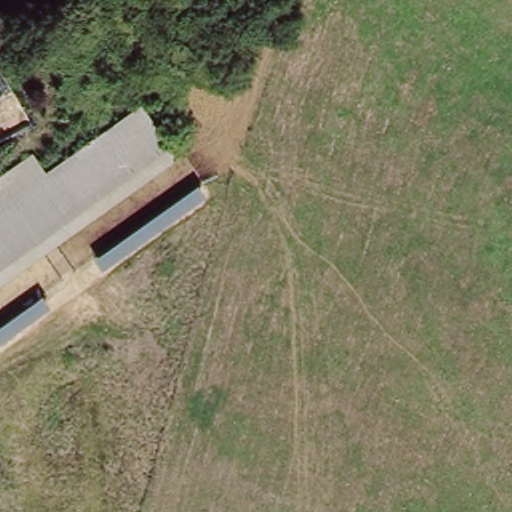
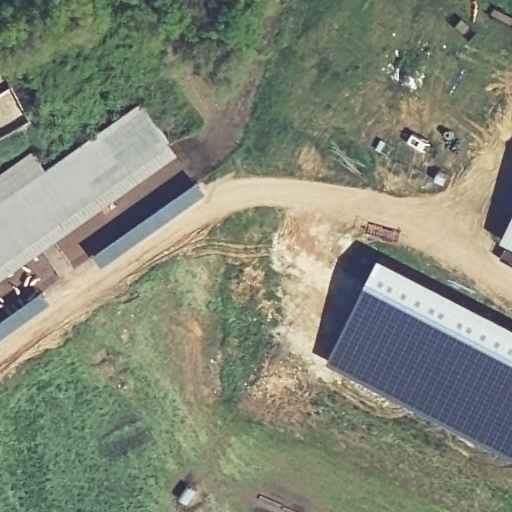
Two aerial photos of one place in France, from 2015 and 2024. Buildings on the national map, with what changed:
unchanged [(0,266),(0,179),(31,157),(44,176),(139,106),(168,144),(0,266)]
unchanged [(168,144),(177,156),(0,284),(0,266),(168,144)]
unchanged [(94,257),(198,185),(207,198),(103,269),(94,257)]
new [(512,225),(512,247),(504,243),(512,225)]
new [(512,324),(512,454),(510,453),(327,362),(380,257),(512,324)]
unchanged [(43,295),(52,307),(0,342),(0,324),(43,295)]

